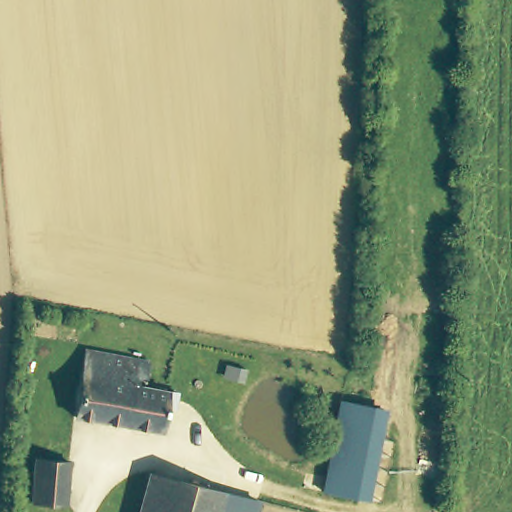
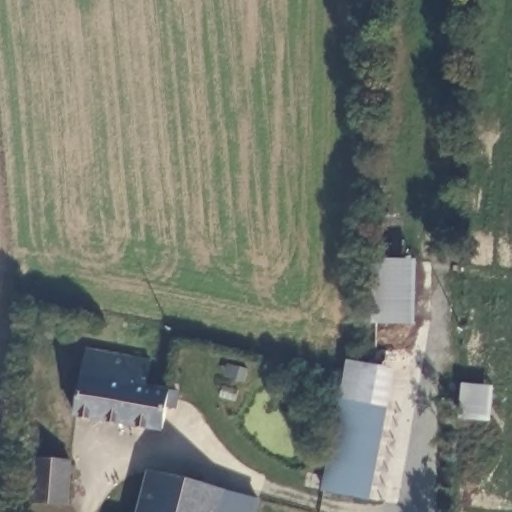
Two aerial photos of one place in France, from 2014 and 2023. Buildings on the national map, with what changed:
new [(371,326),(372,259),(417,260),(416,325),(371,326)]
unchanged [(80,415),(92,347),(142,357),(137,384),(169,390),(162,430),(80,415)]
new [(340,399),(345,360),(393,370),(386,408),(340,399)]
new [(490,423),(455,421),(457,384),(494,386),(490,423)]
unchanged [(340,399),(386,408),(368,501),(320,491),(340,399)]
unchanged [(69,461),(66,505),(32,502),(37,458),(69,461)]
unchanged [(149,469),(190,480),(182,512),(138,512),(149,469)]
unchanged [(224,489),(255,497),(251,512),(182,512),(190,480),(224,489)]

